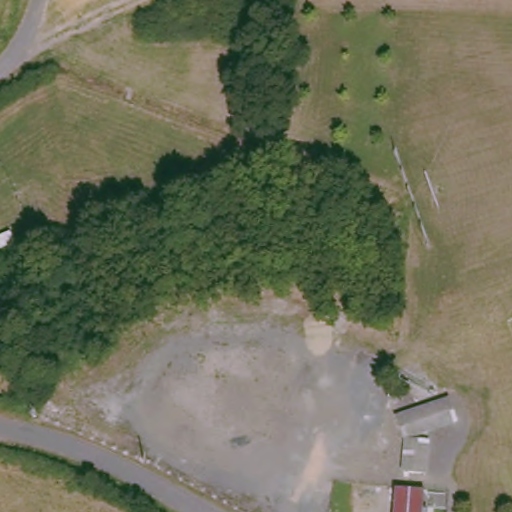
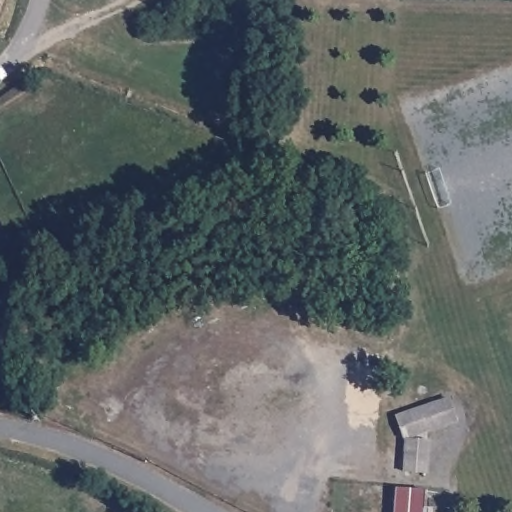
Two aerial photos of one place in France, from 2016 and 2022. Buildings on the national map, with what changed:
unchanged [(453,402),(461,422),(408,441),(400,420),(453,402)]
unchanged [(407,474),(410,441),(431,442),(430,475),(407,474)]
unchanged [(422,510),(426,510),(426,512),(392,512),(395,486),(424,489),(422,510)]

